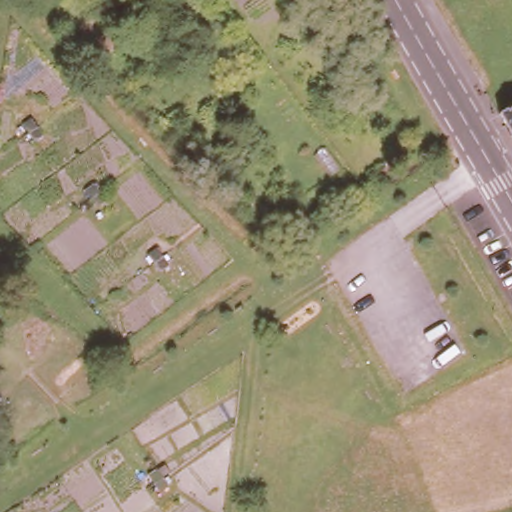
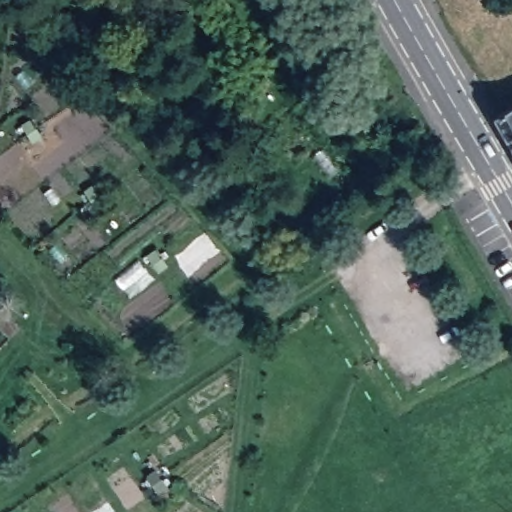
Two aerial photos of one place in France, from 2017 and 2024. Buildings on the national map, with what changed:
unchanged [(123,48),(105,62),(68,15),(88,1),(123,48)]
unchanged [(511,130),(500,109),(512,102),(512,131),(511,130)]
unchanged [(398,162),(368,183),(358,171),(390,148),(398,162)]

